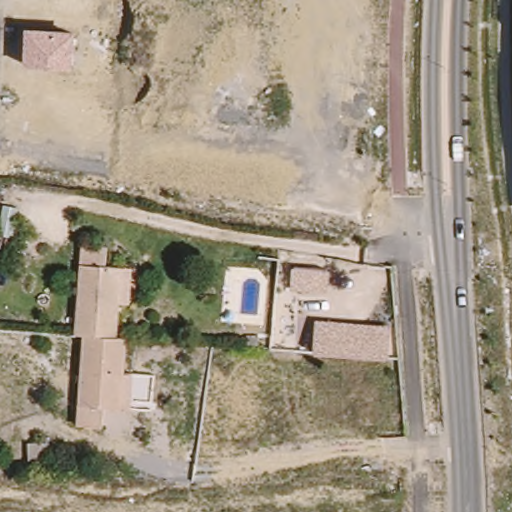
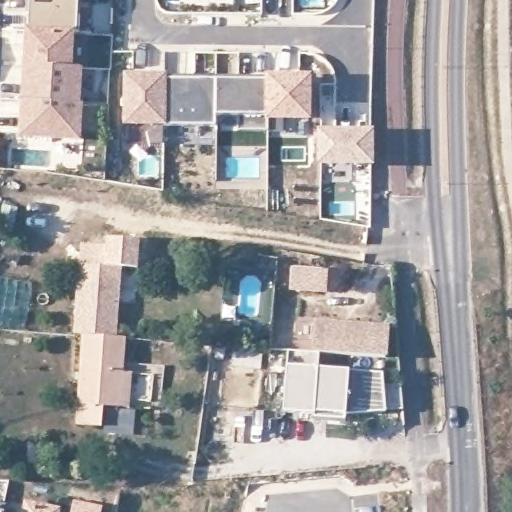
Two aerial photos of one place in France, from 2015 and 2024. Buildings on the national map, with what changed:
new [(75,30),(30,27),(30,0),(79,0),(75,30)]
unchanged [(25,27),(75,30),(73,66),(23,65),(25,27)]
new [(72,69),(83,69),(82,103),(22,100),(23,65),(73,66),(72,69)]
new [(127,77),(165,77),(165,79),(164,123),(127,123),(127,77)]
new [(217,115),(217,80),(269,80),(269,78),(309,78),(309,118),(269,118),(269,131),(237,131),(238,116),(217,115)]
new [(164,123),(165,79),(217,80),(217,115),(217,127),(164,126),(164,123)]
new [(22,100),(82,103),(83,103),(82,142),(20,138),(22,100)]
new [(322,133),(372,133),(371,163),(321,163),(322,133)]
unchanged [(69,333),(75,244),(100,245),(99,266),(115,267),(125,268),(123,302),(113,301),(111,336),(77,334),(69,333)]
unchanged [(292,267),(330,270),(328,292),(290,289),(292,267)]
unchanged [(316,319),(390,325),(389,357),(313,351),(316,319)]
unchanged [(125,406),(115,406),(98,405),(97,425),(72,423),(77,334),(111,336),(120,337),(117,371),(127,372),(125,406)]
new [(320,352),(318,368),(383,374),(387,412),(346,415),(345,424),(315,422),(315,414),(284,412),(287,350),(313,351),(320,352)]
new [(60,509),(59,512),(23,512),(25,501),(60,509)]

